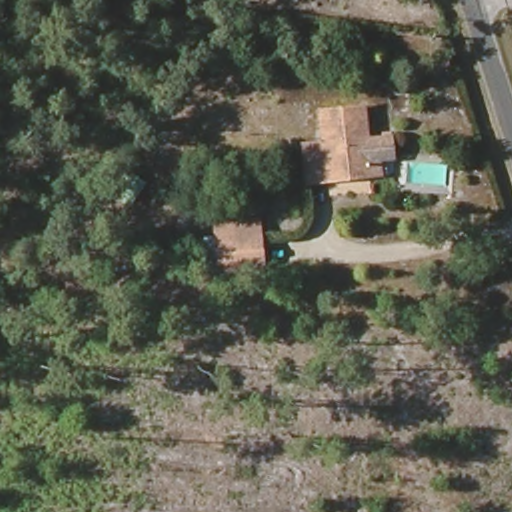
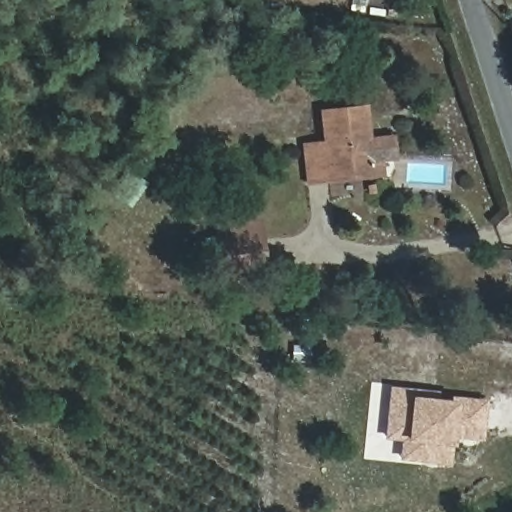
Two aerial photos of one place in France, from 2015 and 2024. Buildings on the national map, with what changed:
unchanged [(367,178),(319,181),(316,144),(328,142),(325,114),(363,111),(366,148),(383,147),(384,167),(377,167),(378,177),(367,178)]
unchanged [(94,212),(107,187),(130,202),(115,229),(94,212)]
unchanged [(219,245),(260,240),(261,265),(220,270),(219,245)]
new [(388,385),(437,390),(436,399),(457,401),(449,466),(404,461),(410,442),(382,440),(388,385)]
new [(453,438),(457,401),(449,400),(450,396),(487,399),(482,441),(453,438)]

